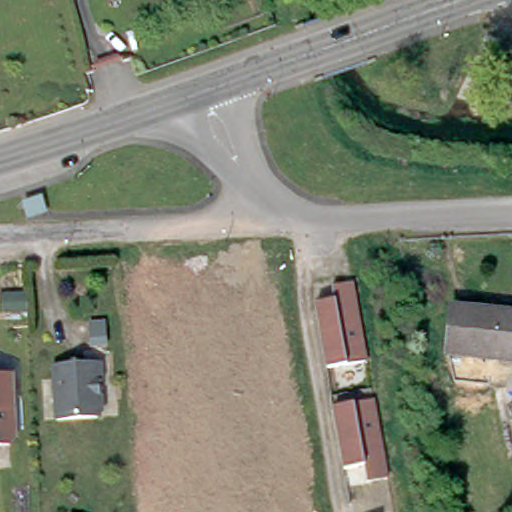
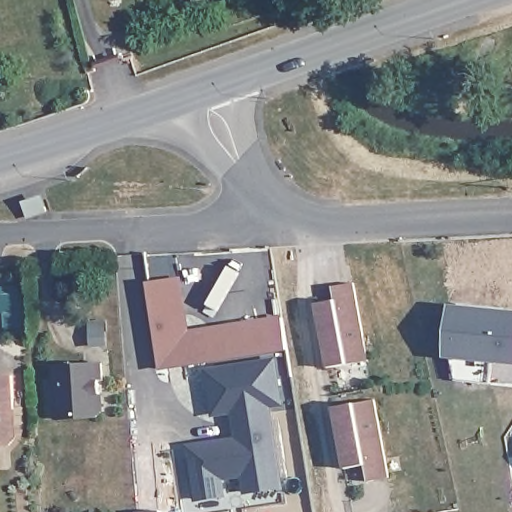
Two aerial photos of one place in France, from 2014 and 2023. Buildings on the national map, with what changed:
unchanged [(22,202),(43,196),(48,214),(46,214),(28,220),(26,215),(22,202)]
new [(186,331),(281,318),(285,347),(161,367),(151,282),(178,280),(186,331)]
unchanged [(367,359),(327,367),(316,302),(334,299),(331,286),(353,282),(367,359)]
unchanged [(28,303),(28,311),(3,313),(2,295),(28,292),(28,303)]
unchanged [(448,355),(453,308),(512,314),(512,361),(448,355)]
new [(211,415),(204,370),(277,358),(284,405),(271,407),(270,399),(230,405),(231,412),(211,415)]
unchanged [(103,381),(98,381),(99,395),(100,395),(101,412),(96,417),(56,419),(53,366),(101,363),(103,381)]
unchanged [(5,410),(5,419),(8,419),(14,425),(15,438),(9,445),(0,445),(0,376),(12,376),(13,410),(5,410)]
unchanged [(368,481),(364,464),(344,467),(334,406),(374,398),(381,432),(389,477),(368,481)]
new [(270,399),(282,489),(243,495),(241,477),(223,481),(226,497),(193,502),(186,444),(233,437),(230,405),(270,399)]

